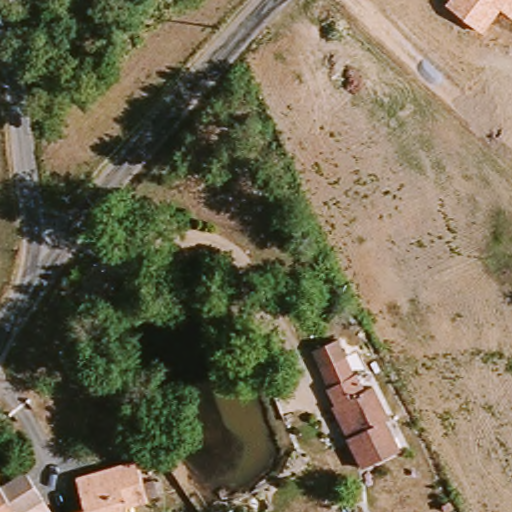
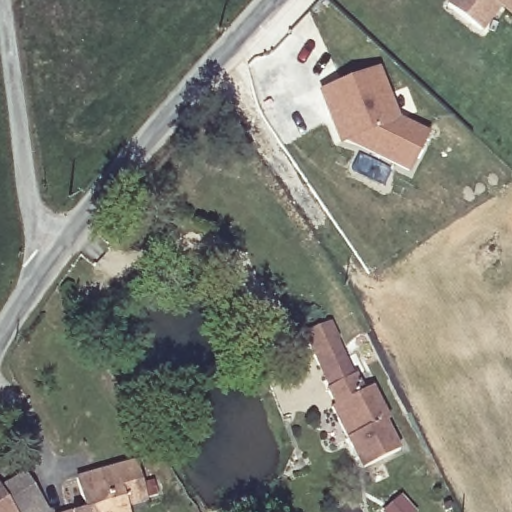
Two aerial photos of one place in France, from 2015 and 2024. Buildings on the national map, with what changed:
unchanged [(512,16),(500,7),(483,32),(445,3),(448,0),(512,0),(512,16)]
new [(332,118),(322,93),(378,71),(397,120),(426,135),(408,172),(360,147),(355,137),(341,142),(332,118)]
unchanged [(327,372),(316,352),(338,340),(350,362),(327,372)]
unchanged [(357,378),(367,397),(376,392),(389,419),(381,423),(399,457),(366,473),(344,432),(334,413),(340,410),(337,403),(330,391),(357,378)]
unchanged [(135,466),(146,507),(127,512),(83,512),(75,482),(135,466)]
unchanged [(1,490),(25,472),(43,498),(24,512),(0,512),(0,489),(1,490)]

